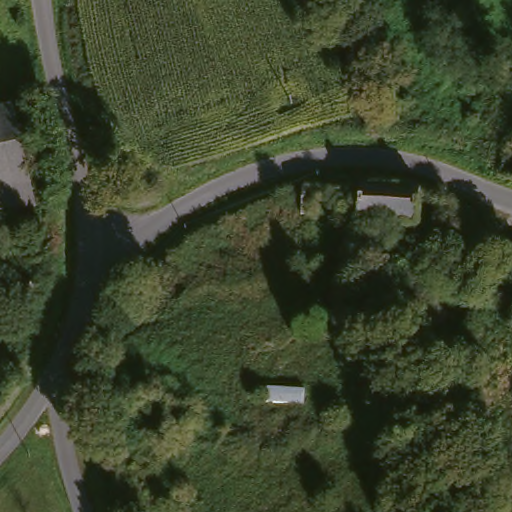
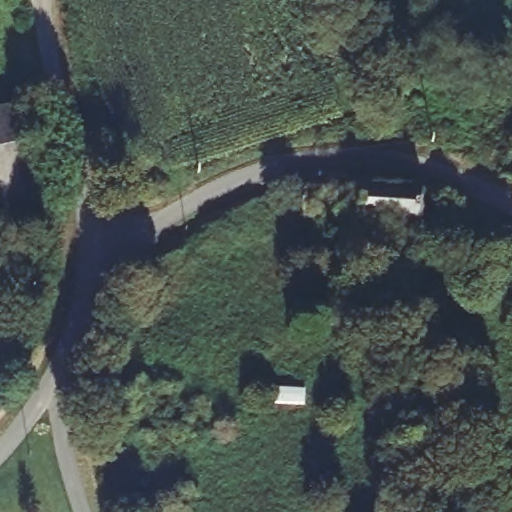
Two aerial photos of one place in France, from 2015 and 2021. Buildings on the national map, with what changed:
unchanged [(0,112),(11,110),(32,210),(0,217),(0,112)]
unchanged [(413,232),(353,225),(357,192),(418,194),(413,232)]
unchanged [(417,310),(420,317),(383,341),(363,308),(415,273),(434,300),(417,310)]

